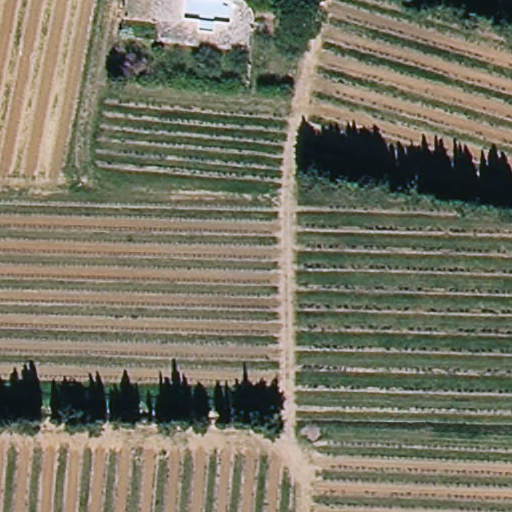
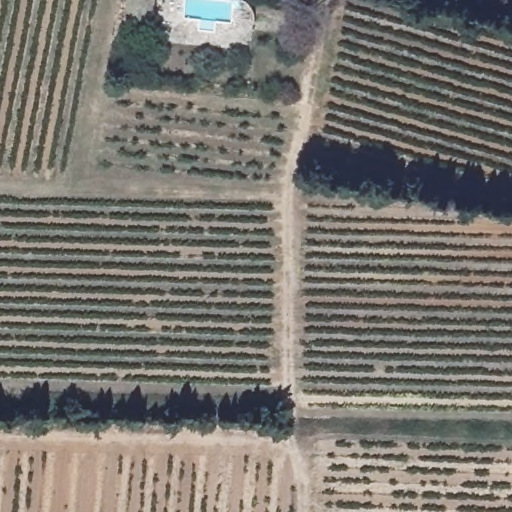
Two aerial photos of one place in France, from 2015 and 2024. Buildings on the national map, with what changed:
unchanged [(129,20),(132,0),(155,0),(153,22),(136,21),(129,20)]

